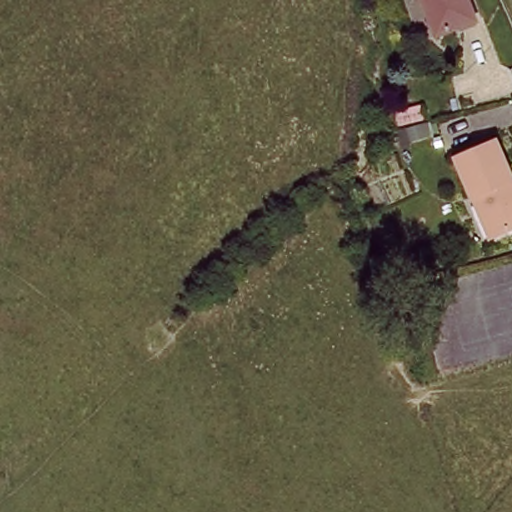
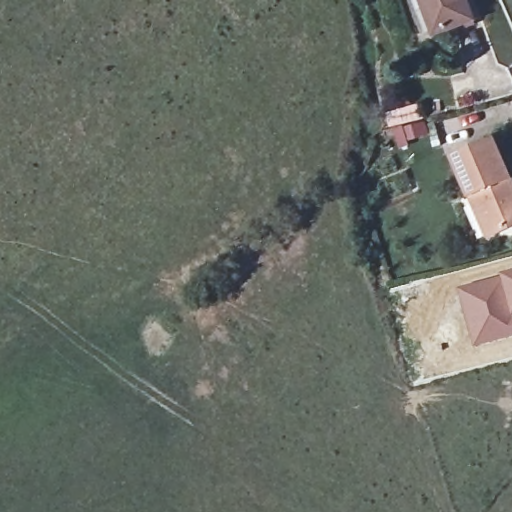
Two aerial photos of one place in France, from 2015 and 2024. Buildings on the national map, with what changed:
unchanged [(435,37),(421,0),(466,0),(475,22),(435,37)]
unchanged [(495,146),(512,200),(512,227),(480,237),(456,158),(495,146)]
new [(512,278),(512,341),(475,351),(459,293),(502,281),(512,278)]

